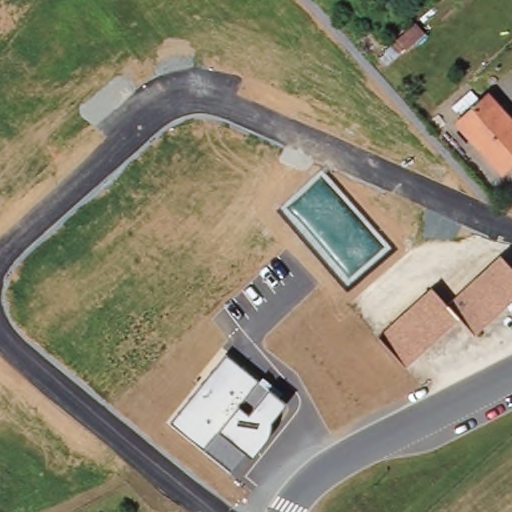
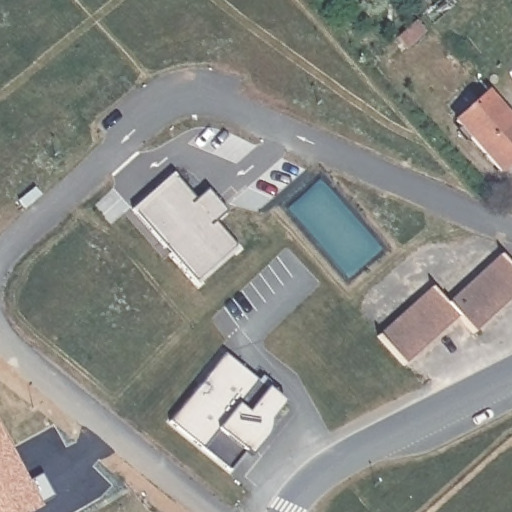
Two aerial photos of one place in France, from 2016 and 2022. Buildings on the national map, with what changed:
demolished [(434,16),(443,26),(424,42),(415,32),(434,16)]
unchanged [(412,31),(422,41),(403,57),(394,47),(412,31)]
unchanged [(459,125),(464,121),(455,111),(474,95),(483,105),(489,99),(512,125),(512,167),(503,175),(459,125)]
new [(198,285),(130,210),(174,173),(195,200),(208,190),(226,211),(215,222),(239,249),(198,285)]
unchanged [(512,271),(512,302),(473,336),(459,319),(402,372),(374,341),(434,288),(449,303),(500,257),(512,271)]
unchanged [(258,382),(262,377),(273,386),(268,391),(282,403),(270,418),(270,432),(252,456),(245,451),(230,470),(171,421),(226,357),(258,382)]

